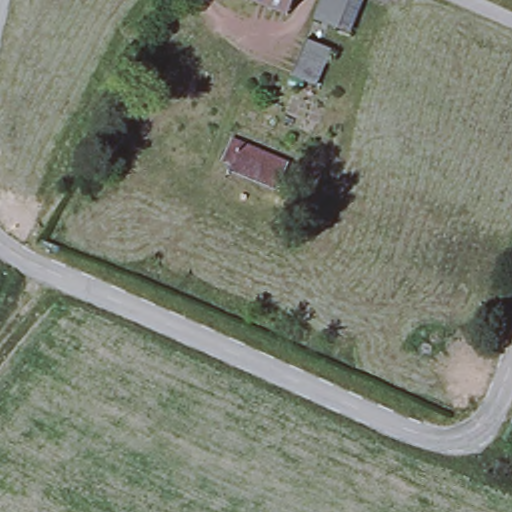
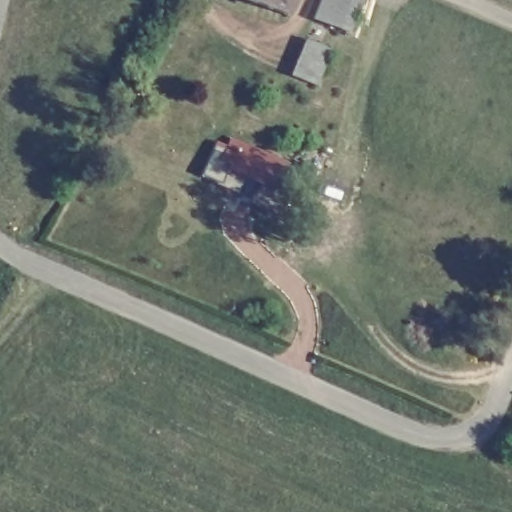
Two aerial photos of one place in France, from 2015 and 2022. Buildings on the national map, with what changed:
unchanged [(288,14),(254,0),(293,0),(288,14)]
unchanged [(345,32),(320,22),(329,0),(358,0),(345,32)]
unchanged [(297,160),(282,193),(220,167),(233,135),(297,160)]

